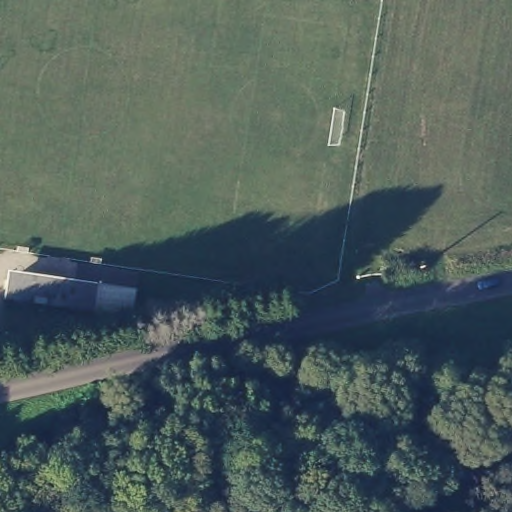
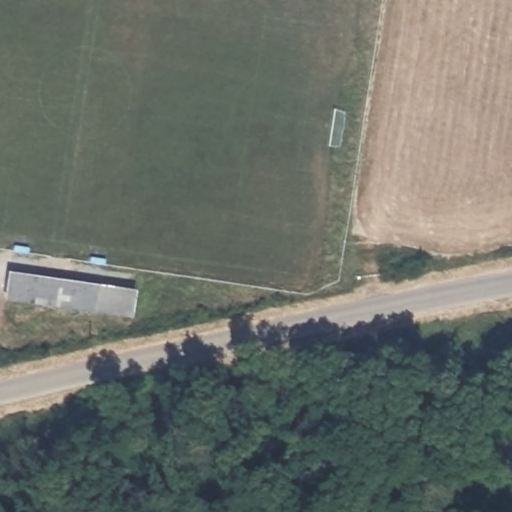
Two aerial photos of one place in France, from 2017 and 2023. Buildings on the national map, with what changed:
unchanged [(15,298),(17,280),(138,297),(136,315),(15,298)]

